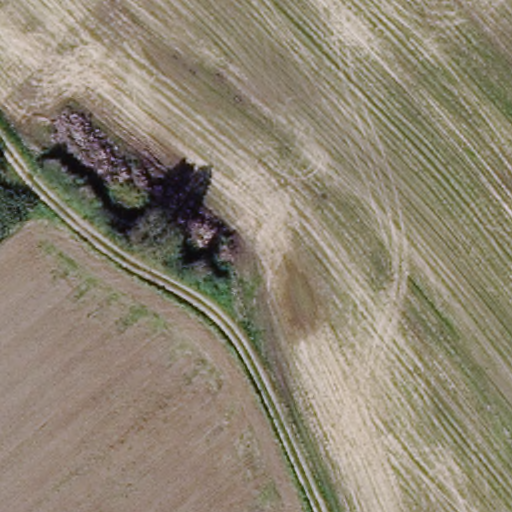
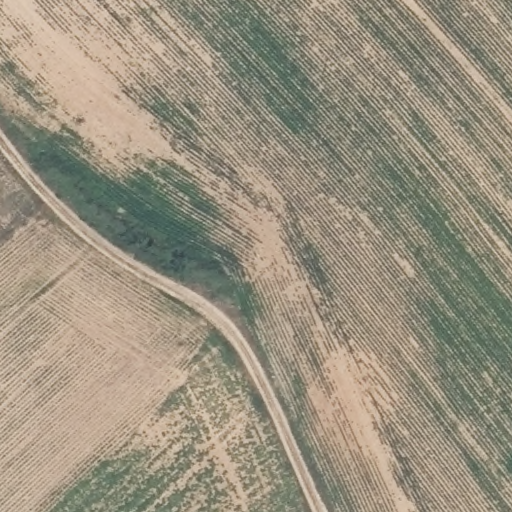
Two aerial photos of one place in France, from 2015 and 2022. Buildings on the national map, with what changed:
[]

